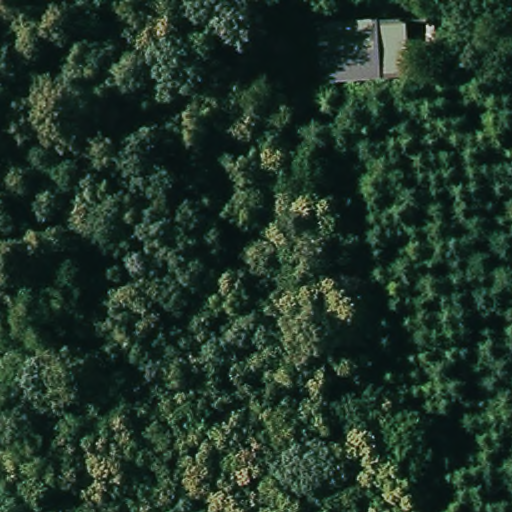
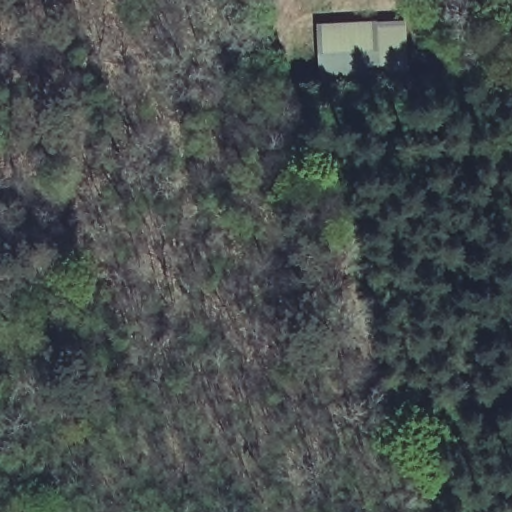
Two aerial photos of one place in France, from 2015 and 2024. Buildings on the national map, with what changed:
unchanged [(387,84),(324,87),(321,27),(384,25),(387,84)]

